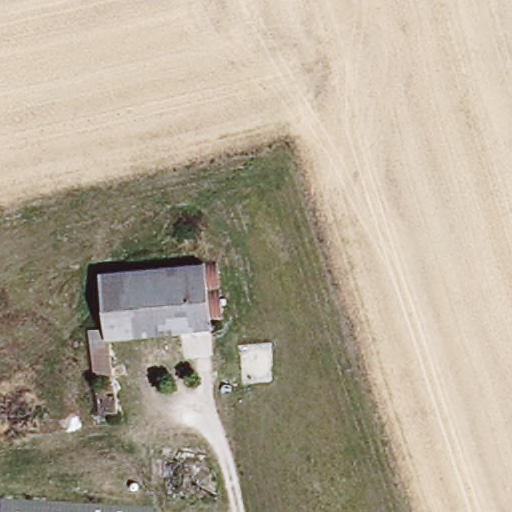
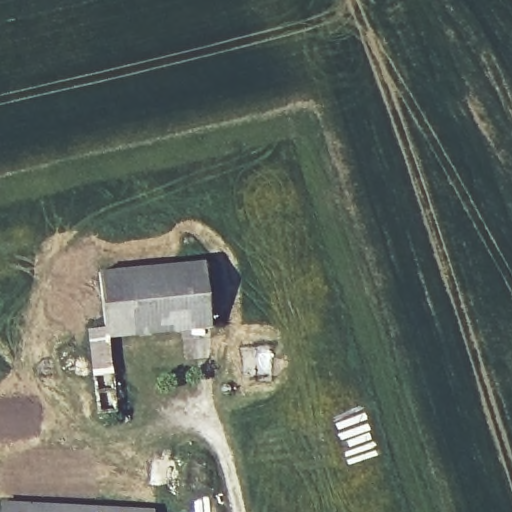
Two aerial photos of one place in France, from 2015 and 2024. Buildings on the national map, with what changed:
unchanged [(102,274),(209,263),(217,329),(110,337),(113,410),(87,410),(91,320),(107,320),(102,274)]
unchanged [(9,501),(157,508),(156,512),(8,512),(9,501)]

